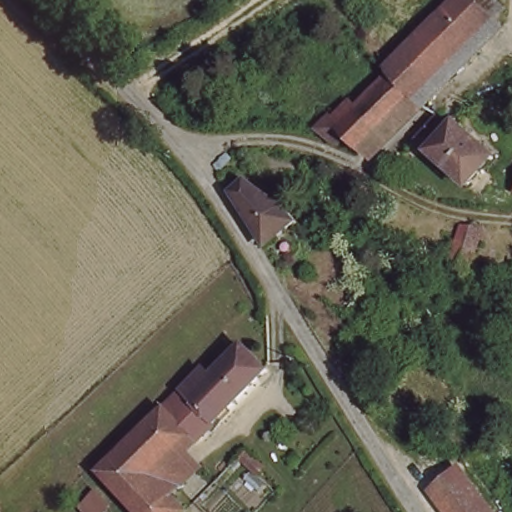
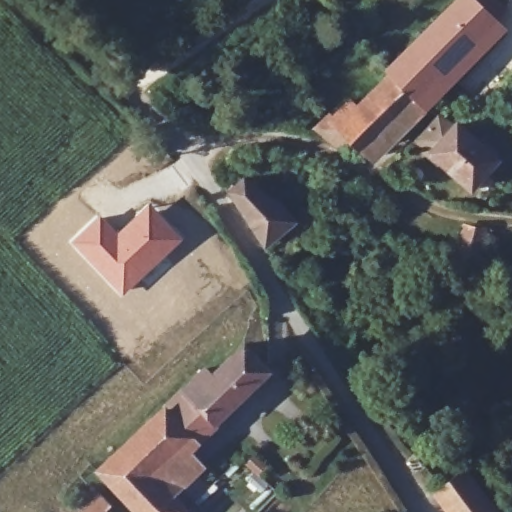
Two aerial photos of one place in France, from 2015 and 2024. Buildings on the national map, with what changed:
unchanged [(394,77),(393,75),(392,75),(470,0),(471,0),(496,25),(419,102),(394,77)]
unchanged [(419,102),(362,158),(349,145),(342,153),(322,138),(319,132),(331,120),(334,122),(355,104),(360,109),(394,77),(419,102)]
unchanged [(504,165),(482,194),(441,161),(425,148),(447,121),(457,128),(462,133),(504,165)]
unchanged [(293,222),(288,227),(291,231),(286,235),(282,230),(261,245),(227,193),(216,175),(226,168),(241,180),(277,208),(293,222)]
new [(100,213),(117,230),(149,201),(184,238),(122,296),(70,240),(100,213)]
unchanged [(479,229),(487,232),(482,250),(475,248),(472,247),(463,273),(445,264),(455,229),(460,216),(469,217),(482,219),(479,229)]
unchanged [(205,440),(200,435),(191,443),(157,475),(179,498),(191,512),(135,512),(120,496),(100,476),(212,372),(219,379),(250,352),(273,376),(215,430),(205,440)]
unchanged [(211,466),(179,498),(157,475),(191,443),(211,466)]
unchanged [(265,475),(259,481),(249,471),(256,465),(265,475)]
unchanged [(438,512),(430,502),(453,477),(482,512),(438,512)]
unchanged [(104,512),(83,512),(81,509),(94,495),(108,508),(104,512)]

